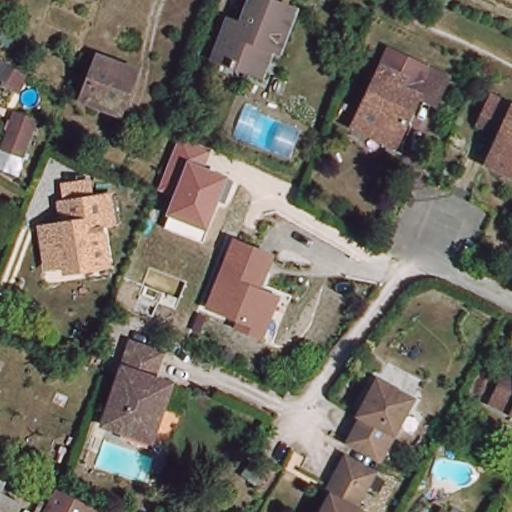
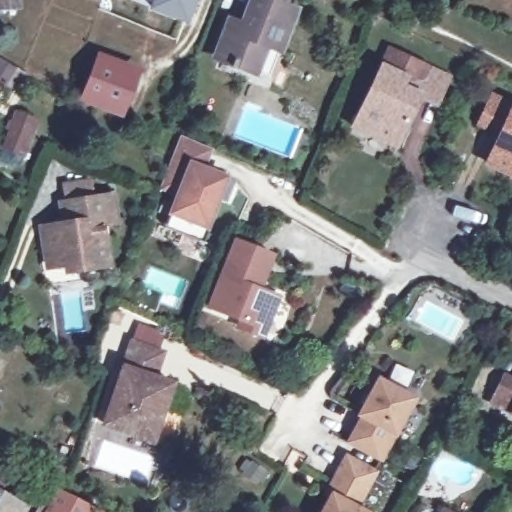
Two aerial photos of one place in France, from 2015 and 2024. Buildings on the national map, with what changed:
unchanged [(0,0),(16,0),(16,3),(0,4),(0,0)]
new [(148,9),(152,0),(197,0),(187,23),(148,9)]
unchanged [(263,81),(221,65),(235,30),(250,35),(262,4),(299,18),(285,58),(280,56),(270,84),(263,81)]
unchanged [(440,107),(423,99),(400,149),(359,129),(387,71),(395,54),(431,70),(452,80),(440,107)]
unchanged [(0,79),(0,55),(10,61),(0,79)]
unchanged [(98,64),(131,76),(117,113),(85,101),(98,64)]
unchanged [(497,173),(510,143),(490,133),(502,105),(512,110),(512,179),(497,173)]
unchanged [(14,125),(30,130),(23,154),(6,149),(14,125)]
unchanged [(225,204),(219,202),(202,242),(161,228),(173,197),(158,191),(177,138),(212,150),(205,167),(229,177),(227,179),(233,182),(225,204)]
unchanged [(66,259),(48,262),(41,224),(65,219),(62,198),(66,197),(65,183),(87,179),(90,193),(110,189),(115,219),(102,222),(108,259),(86,263),(68,267),(66,259)]
unchanged [(255,330),(243,326),(210,313),(235,245),(272,259),(258,294),(268,298),(255,330)]
unchanged [(151,444),(103,428),(131,345),(162,355),(153,382),(171,388),(151,444)]
unchanged [(367,414),(365,413),(383,379),(417,397),(384,458),(352,441),(367,414)]
unchanged [(491,406),(505,379),(512,383),(512,416),(491,406)]
unchanged [(335,499),(330,496),(333,488),(348,462),(377,477),(358,511),(360,512),(328,512),(335,499)]
unchanged [(0,494),(22,508),(20,512),(0,512),(0,483),(5,486),(0,494)]
unchanged [(53,504),(57,496),(88,512),(48,512),(53,504)]

